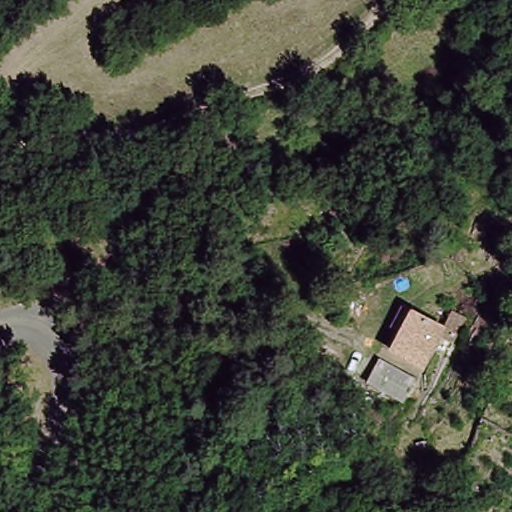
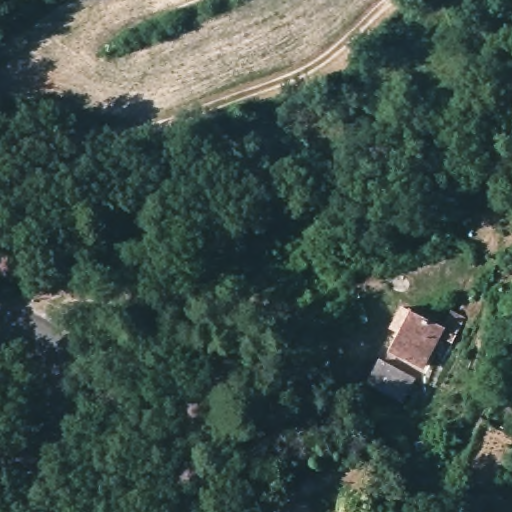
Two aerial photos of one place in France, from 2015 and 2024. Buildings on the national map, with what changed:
unchanged [(453,330),(426,371),(392,354),(415,310),(453,330)]
unchanged [(379,361),(414,378),(396,405),(364,386),(379,361)]

